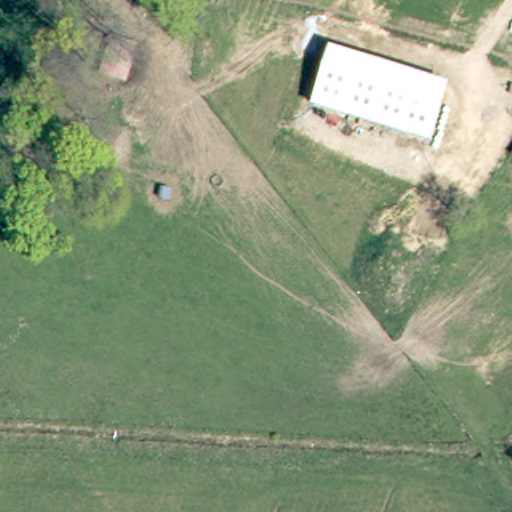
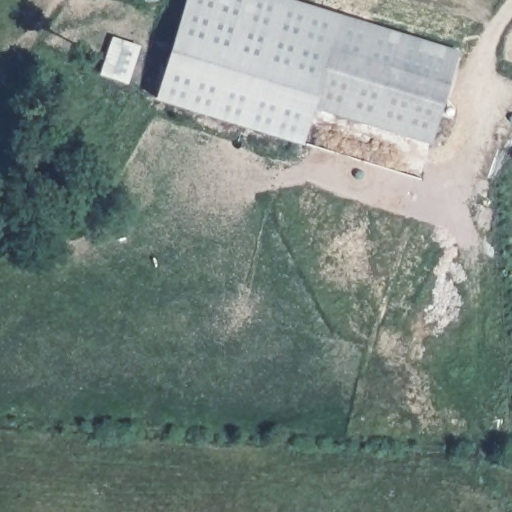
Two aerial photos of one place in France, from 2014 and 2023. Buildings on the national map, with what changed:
new [(302,143),(155,98),(184,0),(300,0),(460,49),(450,85),(330,44),(313,107),(302,143)]
unchanged [(450,85),(432,145),(313,107),(330,44),(450,85)]
unchanged [(512,156),(512,158),(511,157),(512,156)]

